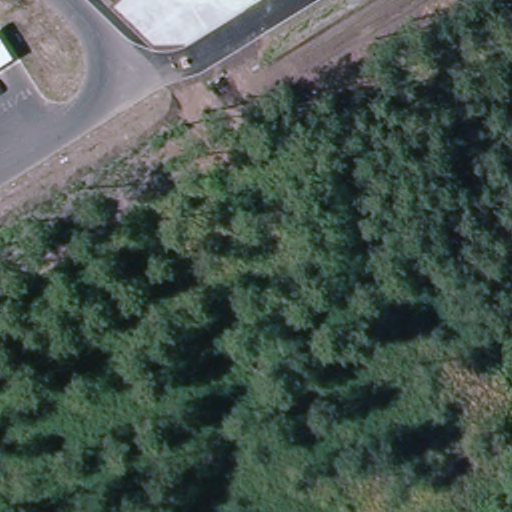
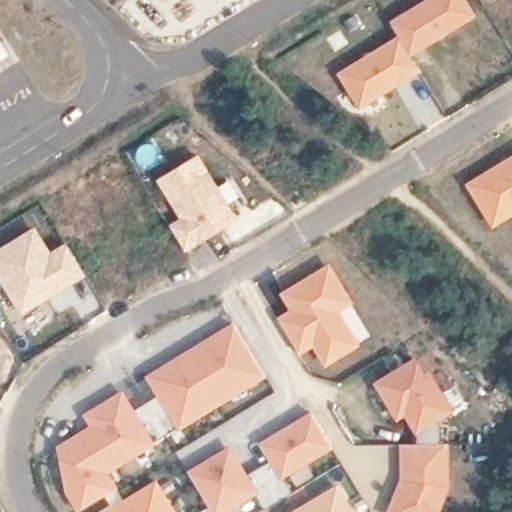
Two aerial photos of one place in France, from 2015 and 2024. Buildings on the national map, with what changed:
new [(477,17),(412,56),(421,72),(360,111),(337,72),(399,37),(390,22),(426,0),(467,0),(477,17)]
unchanged [(0,64),(0,40),(11,57),(0,64)]
new [(512,153),(512,216),(491,228),(463,183),(512,153)]
new [(238,220),(187,252),(170,224),(180,218),(156,180),(199,154),(238,220)]
new [(65,242),(87,277),(22,316),(0,280),(0,248),(35,227),(52,252),(65,242)]
new [(356,302),(340,311),(361,345),(325,367),(313,347),(298,355),(276,318),(290,311),(280,292),(331,262),(356,302)]
new [(267,377),(180,430),(177,426),(154,441),(156,444),(110,472),(120,487),(79,512),(65,489),(57,446),(90,426),(83,414),(123,390),(135,409),(157,397),(145,376),(234,322),(267,377)]
new [(431,370),(454,412),(438,422),(441,427),(440,443),(450,443),(450,489),(442,512),(388,512),(402,477),(400,445),(417,444),(417,432),(405,416),(397,421),(373,382),(416,357),(425,373),(431,370)]
new [(270,462),(259,443),(312,411),(335,448),(284,479),(292,492),(265,507),(257,493),(226,512),(214,512),(189,472),(230,446),(249,473),(270,462)]
new [(102,512),(158,479),(175,512),(102,512)]
new [(291,512),(338,483),(355,512),(291,512)]

